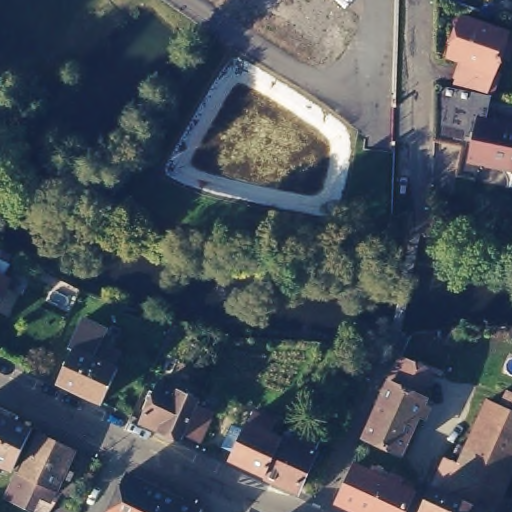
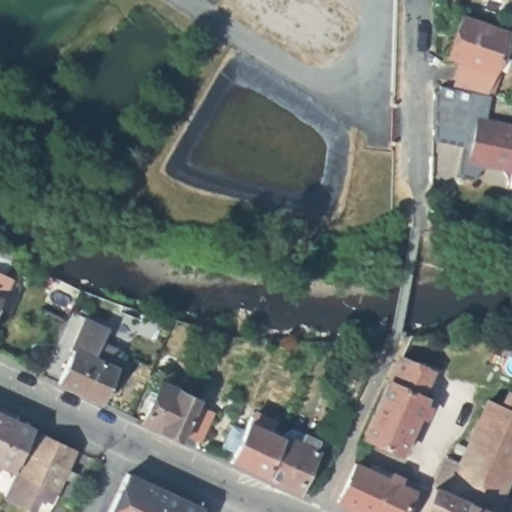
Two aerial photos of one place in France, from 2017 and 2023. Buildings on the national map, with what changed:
unchanged [(487,91),(475,88),(455,84),(464,58),(449,53),(462,13),(509,29),(508,31),(512,32),(512,41),(507,55),(502,70),(495,68),(487,91)]
unchanged [(467,125),(433,119),(434,87),(437,86),(440,84),(440,81),(455,84),(475,88),(467,125)]
unchanged [(487,116),(477,114),(468,157),(495,162),(490,162),(485,164),(480,168),(477,172),(476,176),(455,173),(463,142),(432,136),(433,119),(467,125),(475,88),(487,91),(492,92),(487,116)]
unchanged [(512,183),(507,182),(508,176),(507,172),(505,168),(500,164),(495,162),(490,162),(468,157),(477,114),(487,116),(512,121),(512,183)]
unchanged [(15,275),(0,306),(0,268),(15,275)]
unchanged [(59,378),(73,346),(71,345),(84,317),(105,327),(100,337),(120,347),(112,364),(117,367),(102,399),(59,378)]
unchanged [(435,367),(425,391),(432,394),(406,450),(369,433),(405,353),(435,367)]
unchanged [(205,437),(190,430),(187,435),(149,417),(165,378),(205,396),(202,401),(219,408),(205,437)]
unchanged [(512,477),(507,489),(512,492),(512,497),(505,512),(437,512),(433,510),(427,507),(452,452),(465,459),(494,396),(507,402),(512,392),(512,477)]
unchanged [(37,419),(18,460),(3,453),(0,460),(0,402),(37,419)]
unchanged [(340,439),(322,430),(335,403),(352,411),(340,439)]
unchanged [(239,456),(237,455),(244,441),(238,438),(242,430),(247,433),(257,411),(259,412),(261,408),(281,417),(275,429),(287,434),(270,471),(239,456)]
unchanged [(21,461),(26,463),(45,423),(81,441),(62,482),(61,481),(50,505),(10,486),(21,461)]
unchanged [(304,428),(310,431),(325,438),(303,486),(270,471),(287,434),(299,439),(304,428)]
unchanged [(364,471),(366,466),(387,475),(398,480),(395,486),(410,492),(401,512),(354,512),(332,502),(350,465),(364,471)]
unchanged [(207,508),(205,512),(114,512),(133,472),(207,508)]
unchanged [(512,512),(508,512),(512,503),(512,512)]

